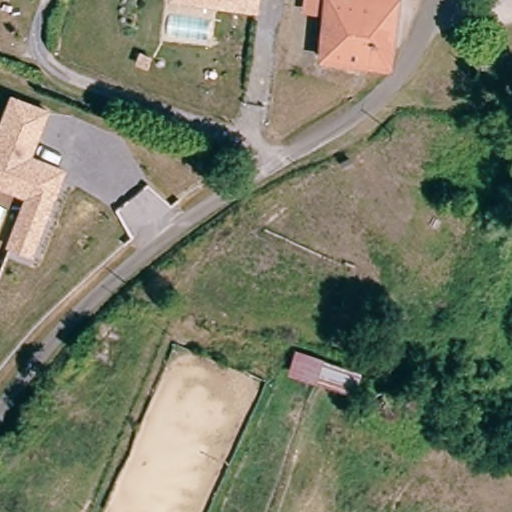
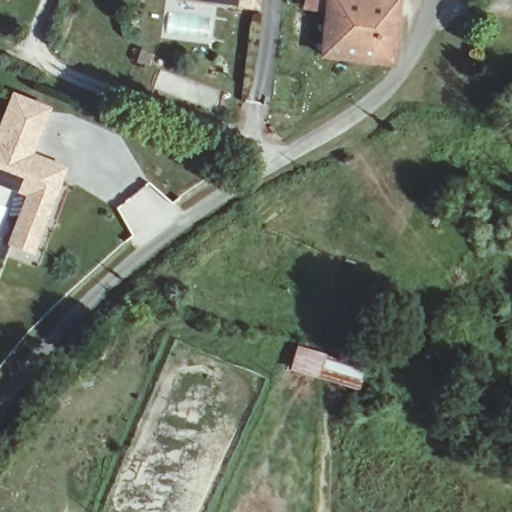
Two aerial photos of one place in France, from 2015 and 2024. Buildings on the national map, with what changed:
unchanged [(194,0),(257,0),(256,8),(194,0)]
unchanged [(319,65),(324,20),(305,19),(307,0),(315,0),(326,1),(327,0),(396,0),(387,71),(319,65)]
unchanged [(13,98),(41,109),(22,155),(57,169),(62,172),(57,184),(28,254),(7,244),(27,197),(10,189),(14,179),(0,173),(0,130),(13,98)]
unchanged [(297,348),(364,366),(358,388),(290,372),(297,348)]

